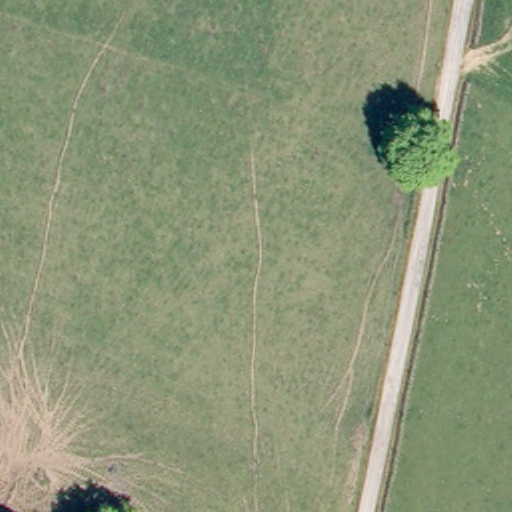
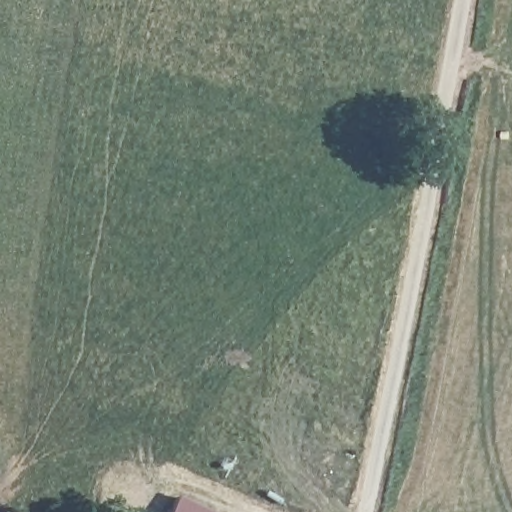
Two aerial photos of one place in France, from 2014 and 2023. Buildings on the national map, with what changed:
new [(177,497),(209,512),(169,512),(177,497)]

